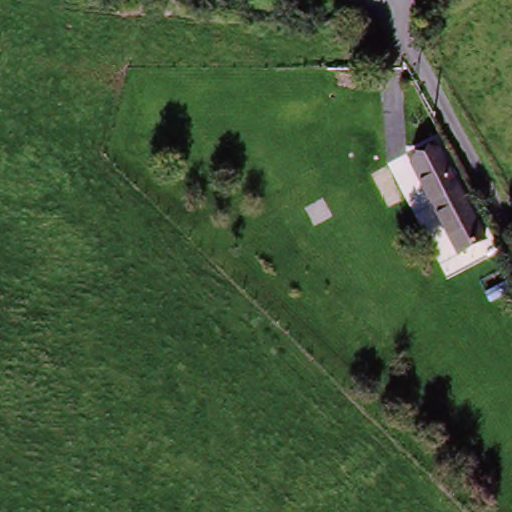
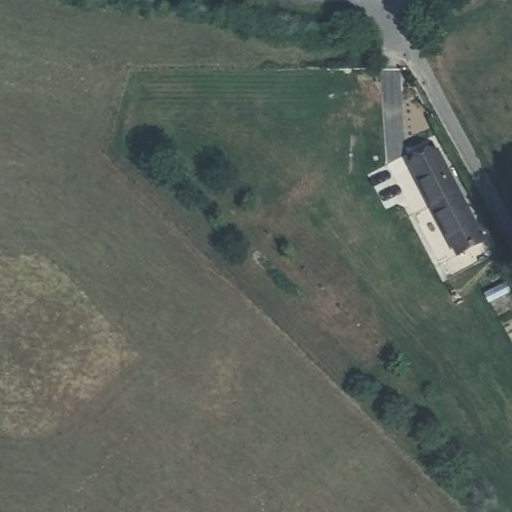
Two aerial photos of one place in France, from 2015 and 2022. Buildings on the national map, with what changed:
unchanged [(434,151),(481,243),(454,255),(406,165),(434,151)]

